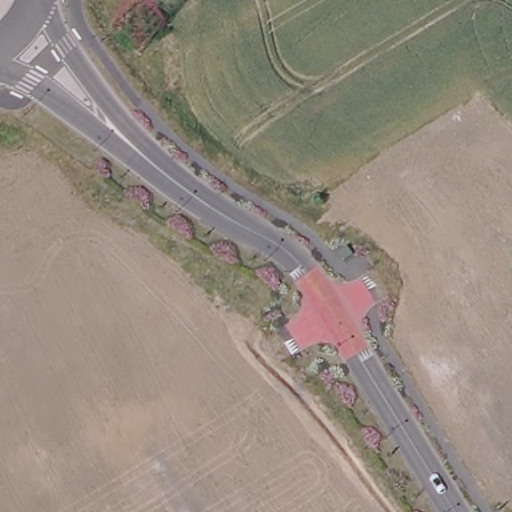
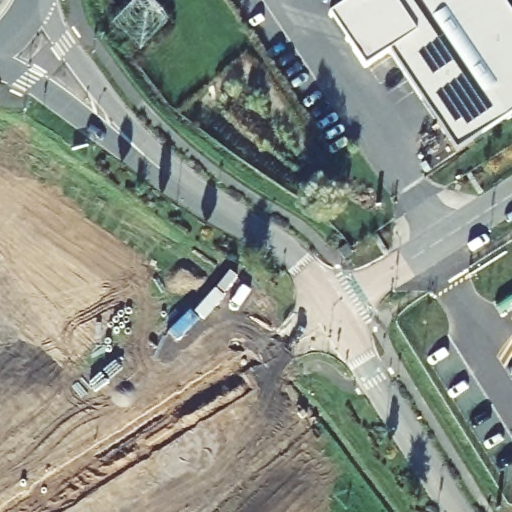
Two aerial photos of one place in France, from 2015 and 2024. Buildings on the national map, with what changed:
new [(512,112),(455,147),(392,54),(367,70),(330,12),(348,2),(346,0),(496,0),(512,23),(512,112)]

